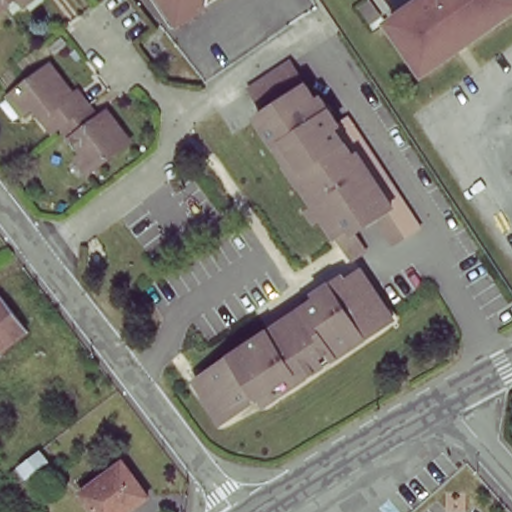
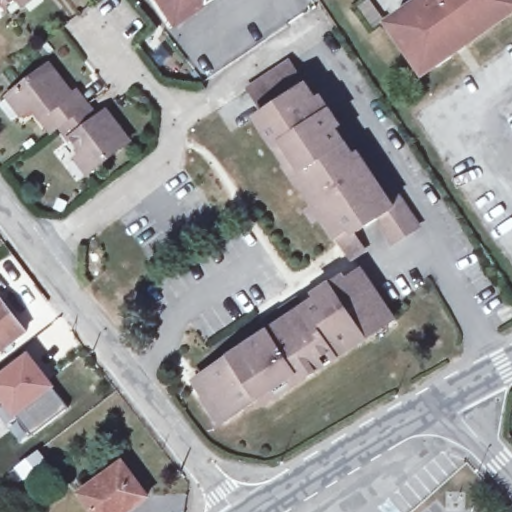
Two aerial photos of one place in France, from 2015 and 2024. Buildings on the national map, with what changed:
unchanged [(0,2),(0,0),(6,0),(1,4),(0,2)]
unchanged [(16,0),(17,0),(17,1),(16,0)]
unchanged [(156,0),(214,0),(206,6),(174,27),(156,0)]
unchanged [(424,6),(421,3),(425,0),(512,0),(512,8),(423,68),(395,26),(424,6)]
unchanged [(390,238),(373,213),(352,227),(363,245),(347,255),(297,179),(304,174),(292,156),(285,160),(260,122),(267,118),(246,85),(287,58),(313,96),(318,93),(335,120),(343,113),(364,145),(372,156),(415,222),(390,238)]
unchanged [(80,111),(60,126),(52,133),(34,108),(23,115),(10,96),(50,66),(67,87),(61,93),(66,99),(77,91),(88,105),(80,111)]
unchanged [(80,111),(88,105),(101,121),(109,115),(129,141),(88,173),(77,158),(81,155),(60,126),(80,111)]
unchanged [(380,320),(385,327),(347,353),(343,346),(321,360),(326,367),(279,398),(274,390),(228,421),(200,379),(275,330),(269,321),(276,316),(299,301),(306,310),(320,300),(317,296),(345,277),(348,282),(363,271),(373,285),(379,295),(391,313),(380,320)]
unchanged [(0,352),(0,299),(26,333),(0,352)]
new [(13,418),(0,400),(0,374),(27,353),(54,388),(50,391),(66,409),(29,436),(13,418)]
unchanged [(28,458),(34,453),(43,465),(26,478),(17,466),(28,458)]
unchanged [(119,463),(146,499),(130,510),(126,505),(115,512),(91,512),(77,493),(119,463)]

